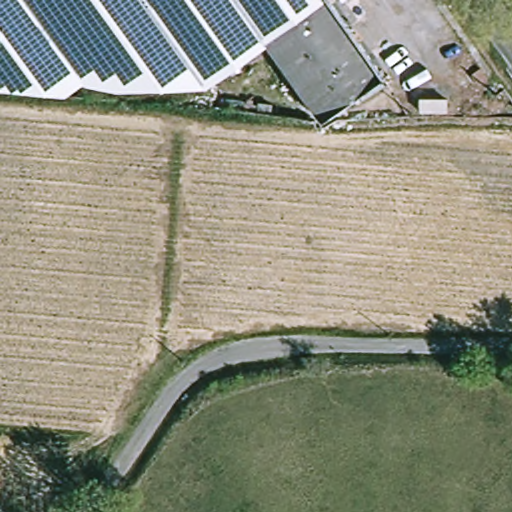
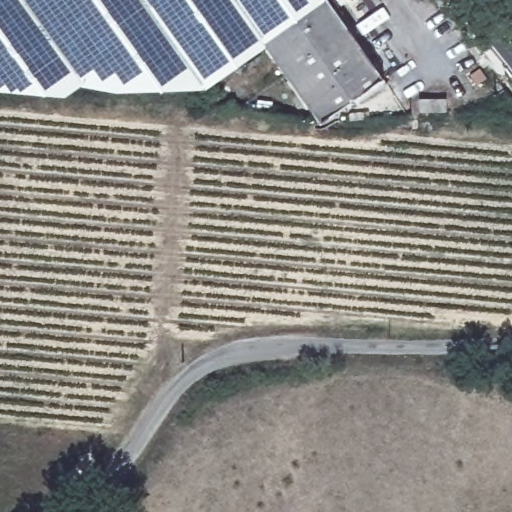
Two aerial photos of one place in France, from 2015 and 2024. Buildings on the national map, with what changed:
unchanged [(191,92),(112,96),(85,89),(70,97),(0,92),(0,0),(317,0),(295,16),(266,38),(191,92)]
unchanged [(318,0),(331,0),(385,76),(324,116),(266,38),(295,16),(318,0)]

